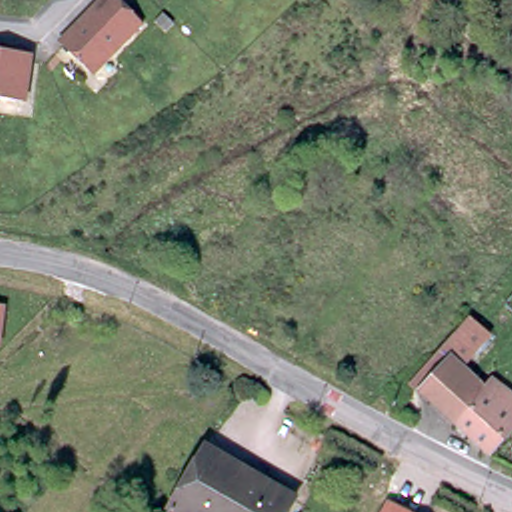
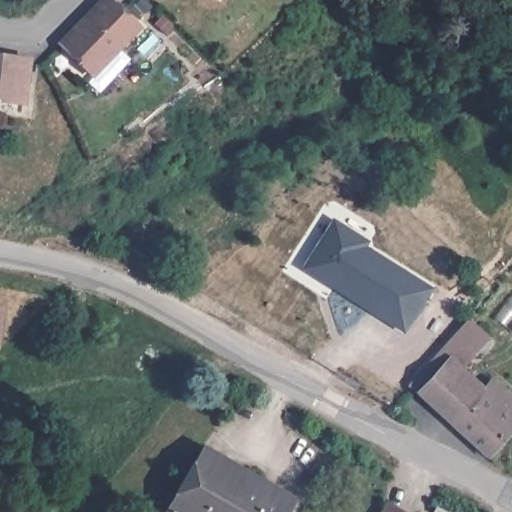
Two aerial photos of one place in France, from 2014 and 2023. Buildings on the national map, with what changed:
unchanged [(90,7),(92,9),(99,0),(108,0),(135,21),(95,75),(60,47),(90,7)]
unchanged [(24,101),(0,100),(0,56),(25,56),(24,101)]
new [(330,217),(370,240),(365,246),(432,287),(404,333),(300,268),(330,217)]
unchanged [(0,346),(0,303),(4,303),(0,346)]
unchanged [(509,425),(488,448),(415,384),(472,322),(480,330),(449,362),(478,386),(489,374),(512,394),(512,428),(509,425)]
unchanged [(162,510),(200,445),(290,500),(283,512),(166,512),(162,510)]
unchanged [(403,512),(378,512),(383,502),(403,512)]

